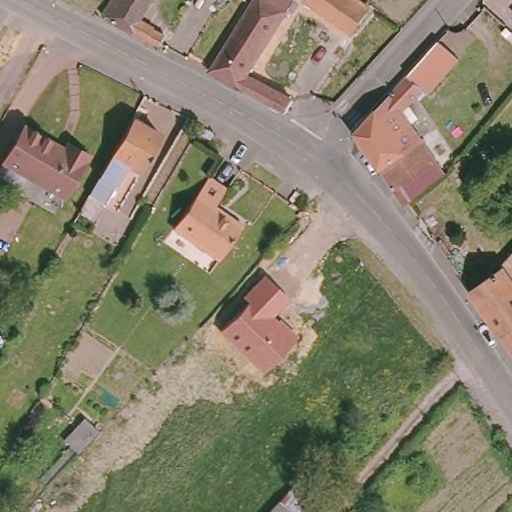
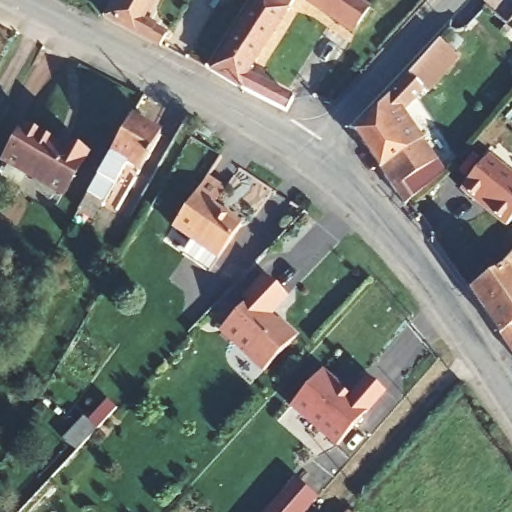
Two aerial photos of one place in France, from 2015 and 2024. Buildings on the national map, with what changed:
unchanged [(113,0),(153,0),(141,21),(164,33),(155,48),(101,21),(113,0)]
unchanged [(256,0),(287,0),(249,66),(292,97),(284,109),(213,70),(256,0)]
unchanged [(370,2),(357,25),(316,0),(367,0),(370,2)]
unchanged [(441,34),(462,55),(431,87),(426,89),(403,112),(440,170),(435,178),(405,203),(357,128),(441,34)]
unchanged [(130,111),(163,131),(145,164),(130,157),(96,214),(78,205),(130,111)]
unchanged [(30,130),(67,152),(72,144),(92,155),(69,198),(10,166),(30,130)]
new [(512,175),(512,220),(505,229),(458,192),(488,155),(512,175)]
unchanged [(207,175),(226,188),(215,206),(240,224),(217,256),(174,224),(207,175)]
unchanged [(503,263),(497,253),(512,237),(512,344),(474,285),(503,263)]
unchanged [(292,298),(277,314),(300,334),(262,372),(220,330),(246,304),(241,300),(265,275),(292,298)]
new [(318,366),(336,382),(333,384),(345,394),(363,374),(380,389),(332,442),(286,402),(318,366)]
unchanged [(85,415),(98,426),(77,448),(65,436),(85,415)]
unchanged [(317,508),(314,512),(264,512),(290,484),(317,508)]
unchanged [(348,512),(337,512),(342,506),(348,512)]

